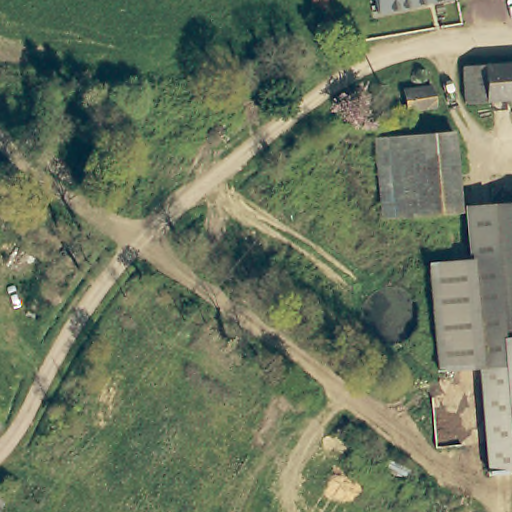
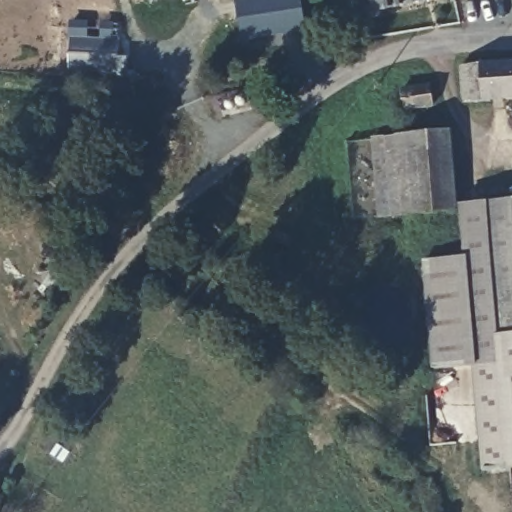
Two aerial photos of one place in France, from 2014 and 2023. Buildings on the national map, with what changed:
new [(244,43),(238,0),(241,0),(303,0),(308,33),(244,43)]
unchanged [(439,0),(380,11),(377,0),(439,0)]
unchanged [(464,65),(512,64),(512,95),(466,97),(464,65)]
unchanged [(405,107),(404,84),(433,83),(434,106),(405,107)]
unchanged [(454,126),(459,204),(459,207),(444,208),(393,211),(390,130),(454,126)]
unchanged [(375,131),(390,130),(393,211),(379,211),(375,131)]
unchanged [(512,203),(512,469),(486,471),(478,367),(474,322),(471,261),(467,206),(512,203)]
unchanged [(471,261),(474,322),(478,367),(439,371),(431,263),(471,261)]
unchanged [(0,495),(6,497),(0,509),(0,495)]

